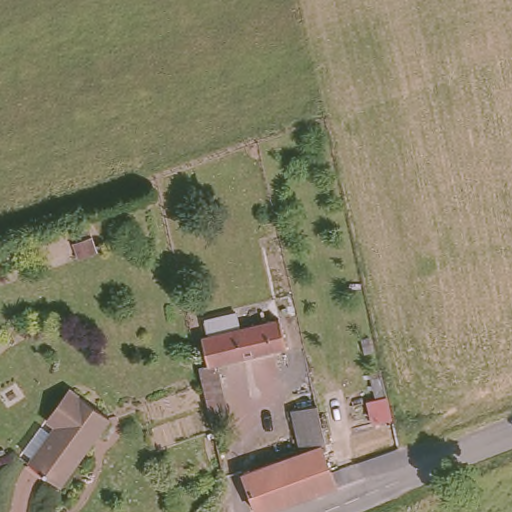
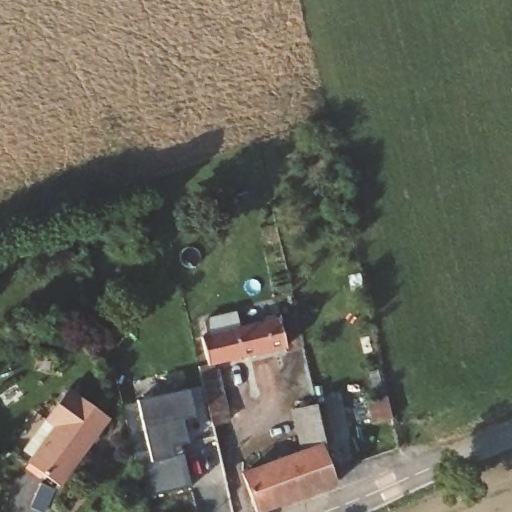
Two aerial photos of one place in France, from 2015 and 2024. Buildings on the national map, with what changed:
demolished [(93,236),(94,250),(79,252),(77,239),(93,236)]
unchanged [(62,244),(64,258),(48,261),(46,247),(62,244)]
unchanged [(208,363),(213,362),(206,336),(221,332),(218,319),(250,311),(253,325),(279,318),(284,346),(229,360),(241,418),(221,423),(219,413),(208,363)]
unchanged [(65,477),(31,452),(59,415),(49,407),(70,377),(115,408),(65,477)]
new [(183,455),(191,485),(148,496),(137,454),(148,452),(136,403),(188,390),(195,418),(183,422),(188,444),(176,447),(179,456),(183,455)]
unchanged [(293,407),(322,399),(326,420),(329,427),(330,435),(318,440),(301,446),(301,443),(293,407)]
unchanged [(374,427),(371,406),(370,403),(389,401),(394,424),(374,427)]
unchanged [(282,451),(301,443),(301,446),(318,440),(332,476),(334,481),(282,505),(265,457),(282,451)]
unchanged [(264,512),(258,512),(242,467),(265,457),(282,505),(264,512)]

